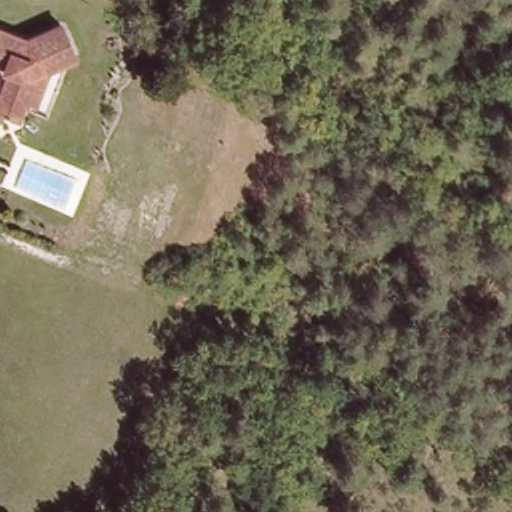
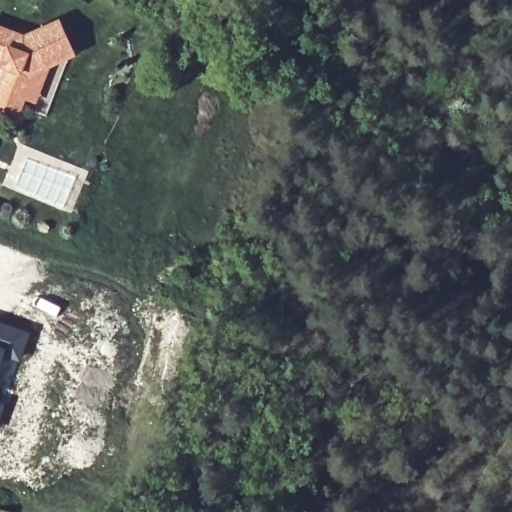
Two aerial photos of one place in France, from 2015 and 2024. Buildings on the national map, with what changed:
unchanged [(0,69),(0,35),(21,44),(62,29),(73,59),(44,70),(20,119),(0,110),(0,99),(8,82),(0,78),(3,70),(0,69)]
new [(31,333),(20,364),(6,360),(0,377),(0,322),(31,333)]
new [(6,404),(0,422),(0,401),(6,404)]

